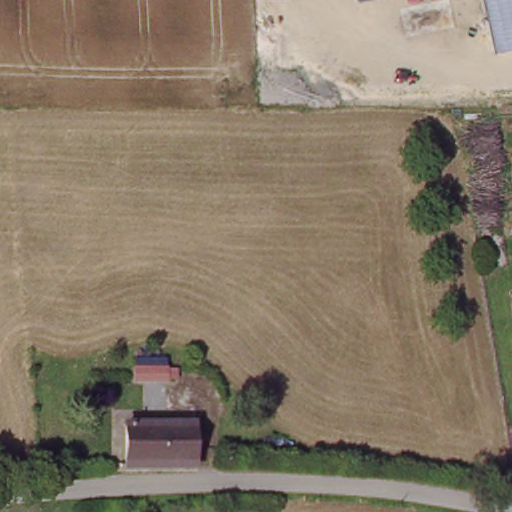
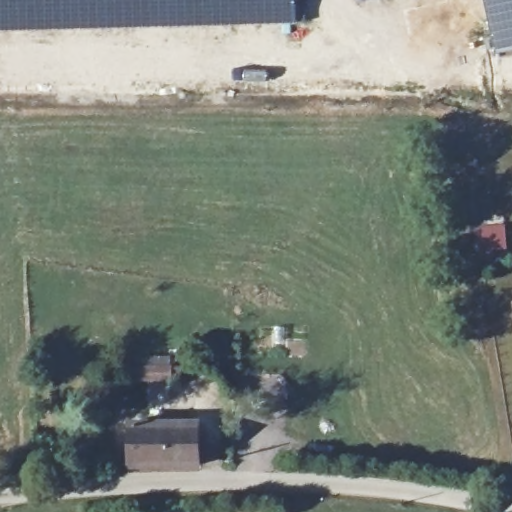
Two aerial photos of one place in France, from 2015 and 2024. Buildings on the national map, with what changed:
new [(296,22),(176,24),(87,23),(40,27),(0,29),(0,0),(295,0),(296,22)]
unchanged [(360,1),(359,0),(364,0),(360,1)]
unchanged [(495,52),(482,0),(512,0),(512,49),(495,52)]
unchanged [(170,371),(170,385),(136,386),(135,372),(170,371)]
unchanged [(130,430),(195,429),(195,469),(130,470),(130,430)]

